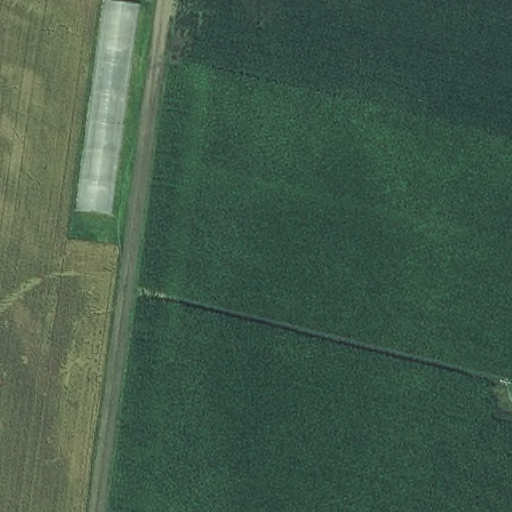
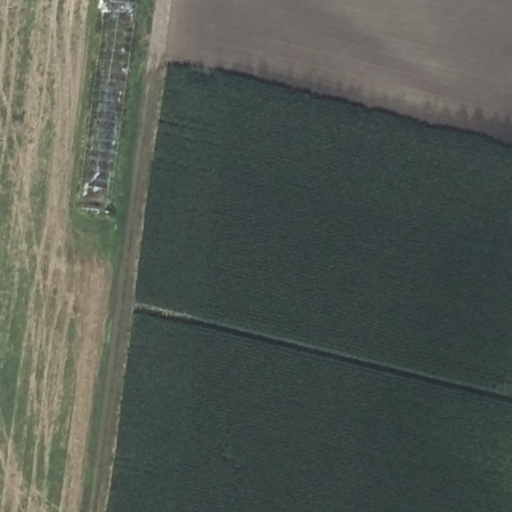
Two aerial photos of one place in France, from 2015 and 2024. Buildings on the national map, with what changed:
unchanged [(113,0),(149,0),(122,214),(87,212),(113,0)]

